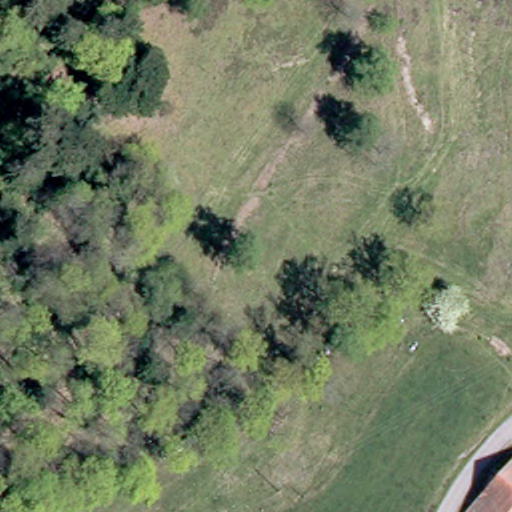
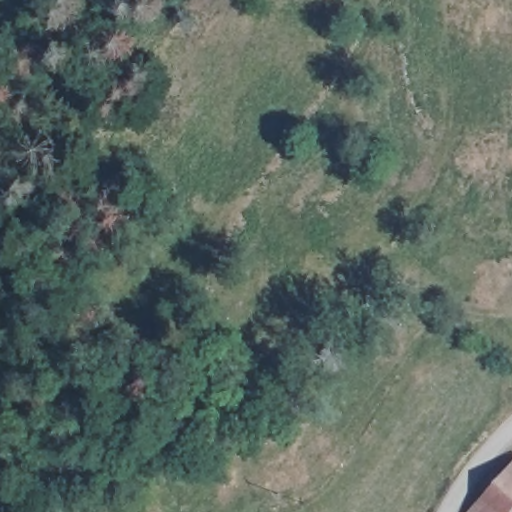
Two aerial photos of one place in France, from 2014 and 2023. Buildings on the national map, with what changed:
unchanged [(512,482),(512,512),(470,512),(497,471),(512,482)]

